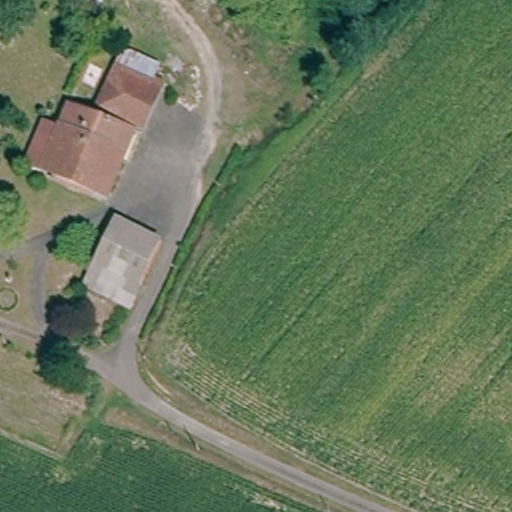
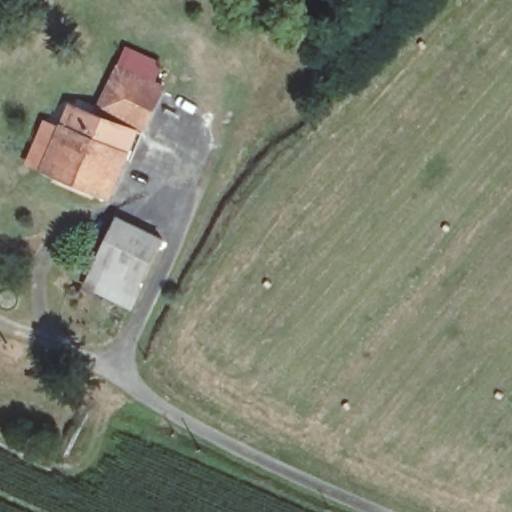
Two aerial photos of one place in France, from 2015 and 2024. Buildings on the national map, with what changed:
unchanged [(144,125),(100,106),(118,68),(161,84),(144,125)]
unchanged [(46,168),(74,105),(97,114),(139,131),(109,197),(46,168)]
unchanged [(130,310),(121,306),(90,291),(125,219),(164,239),(130,310)]

